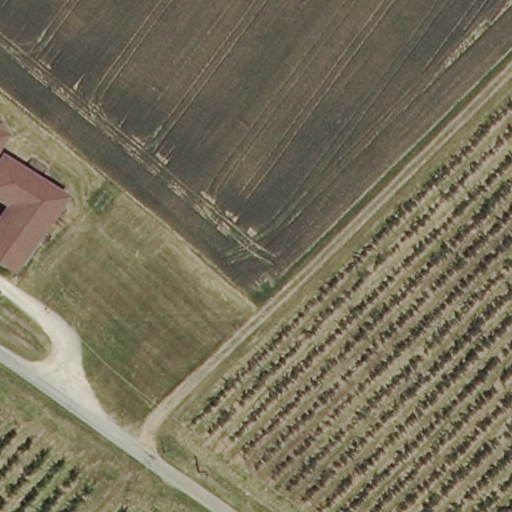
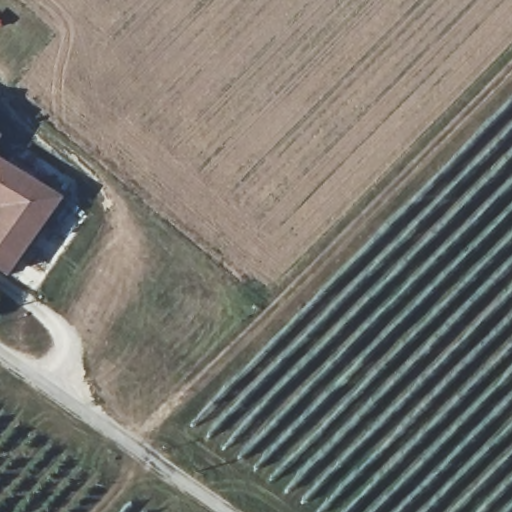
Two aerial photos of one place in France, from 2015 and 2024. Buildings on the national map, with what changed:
unchanged [(60,196),(7,272),(0,268),(0,163),(60,196)]

